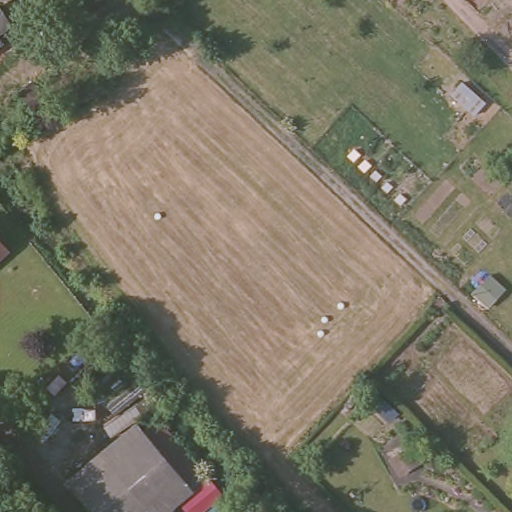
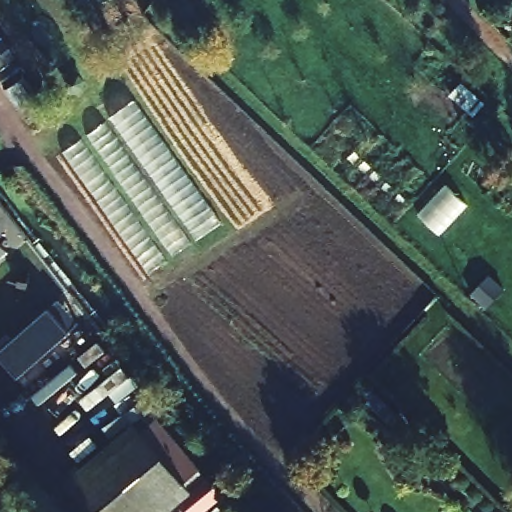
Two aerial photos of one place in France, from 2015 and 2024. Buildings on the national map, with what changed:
unchanged [(0,45),(0,10),(6,7),(21,31),(0,45)]
new [(61,155),(136,101),(221,225),(147,280),(61,155)]
unchanged [(0,259),(0,236),(11,249),(0,259)]
unchanged [(151,442),(168,427),(196,461),(177,474),(185,483),(147,512),(89,512),(68,490),(139,428),(151,442)]
unchanged [(403,462),(403,448),(424,447),(425,462),(403,462)]

